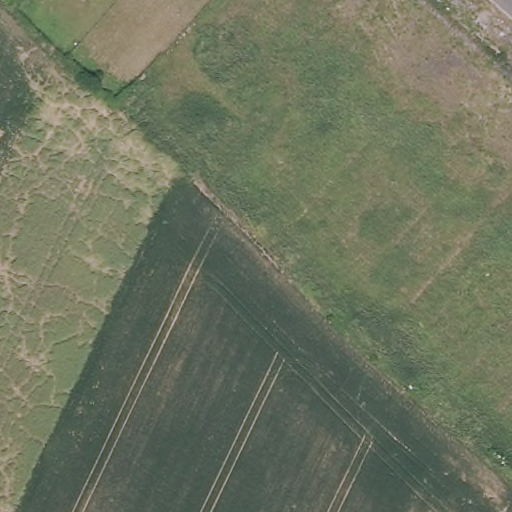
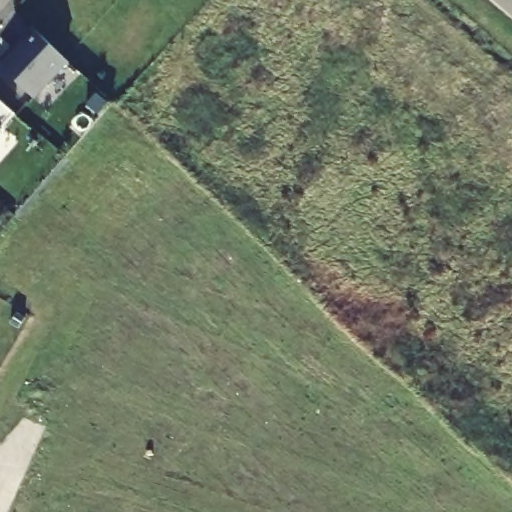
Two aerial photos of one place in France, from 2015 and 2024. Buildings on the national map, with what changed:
new [(35,100),(0,68),(0,66),(35,29),(70,63),(35,100)]
new [(0,131),(0,123),(5,126),(0,131)]

